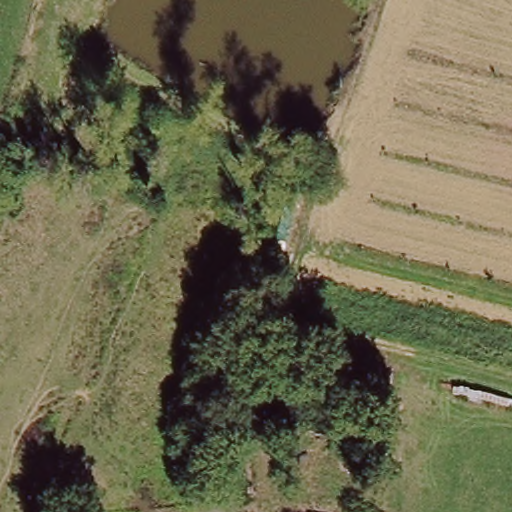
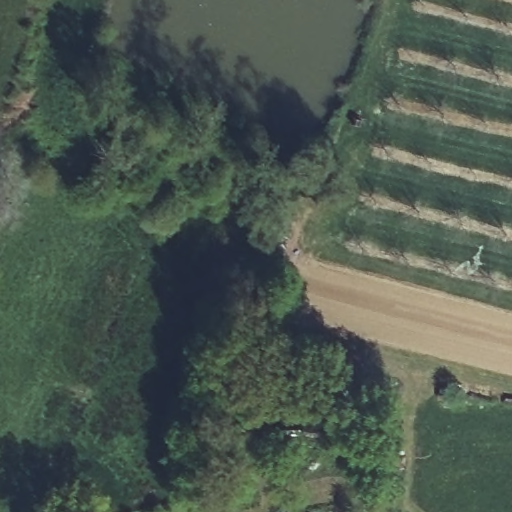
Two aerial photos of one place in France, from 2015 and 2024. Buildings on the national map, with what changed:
unchanged [(337,511),(337,512),(316,512),(316,507),(337,511)]

